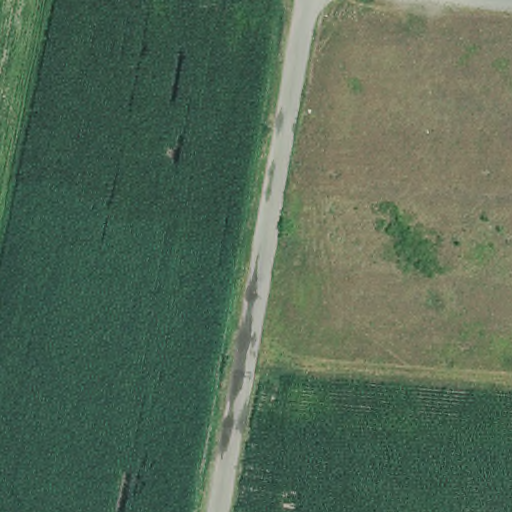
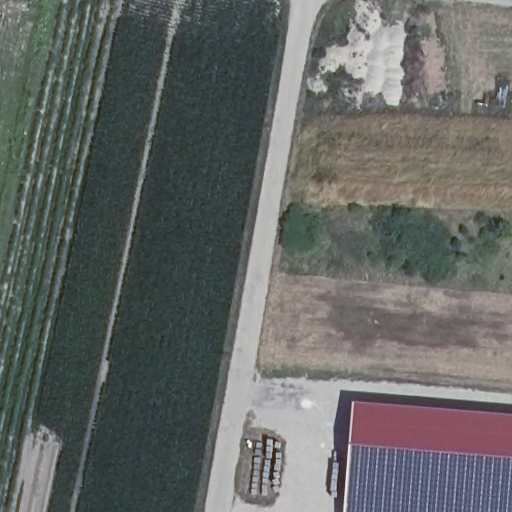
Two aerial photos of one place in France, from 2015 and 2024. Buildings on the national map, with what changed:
new [(512,413),(512,512),(342,512),(351,400),(512,413)]

